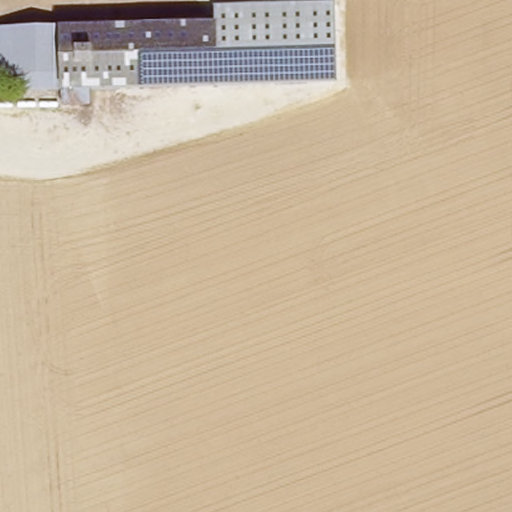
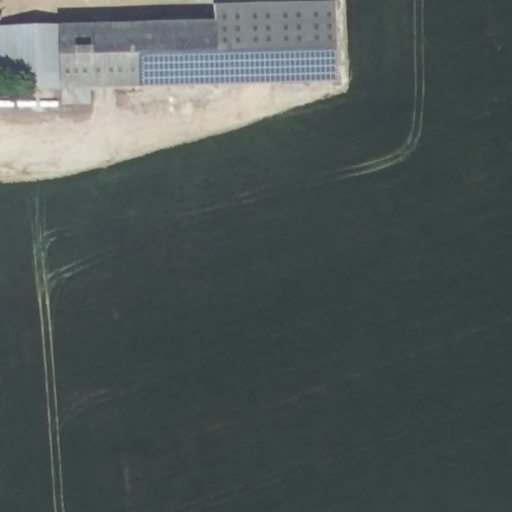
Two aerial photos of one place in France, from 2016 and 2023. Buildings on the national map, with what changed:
unchanged [(314,0),(329,0),(329,3),(334,3),(338,83),(216,84),(214,23),(213,5),(314,3),(314,0)]
unchanged [(204,23),(211,23),(214,23),(216,84),(203,84),(126,86),(86,86),(87,101),(60,103),(60,88),(18,88),(18,84),(18,75),(58,75),(58,26),(204,23)]
unchanged [(58,26),(58,75),(18,75),(13,75),(0,75),(0,27),(11,27),(58,26)]

